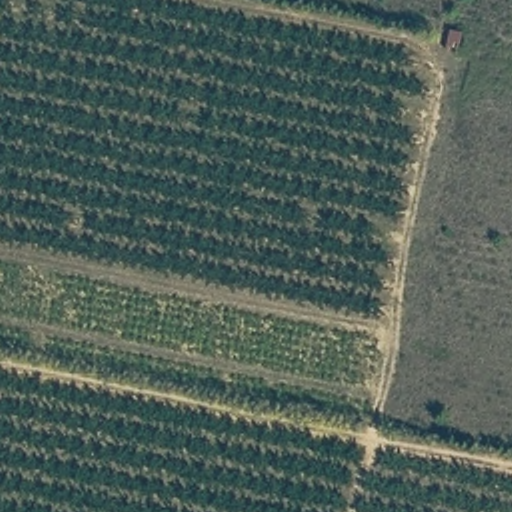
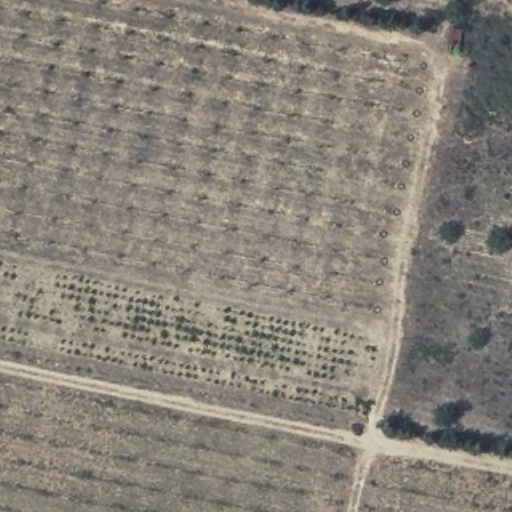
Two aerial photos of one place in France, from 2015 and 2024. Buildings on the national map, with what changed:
unchanged [(447,40),(448,38),(461,42),(458,59),(444,57),(447,40)]

